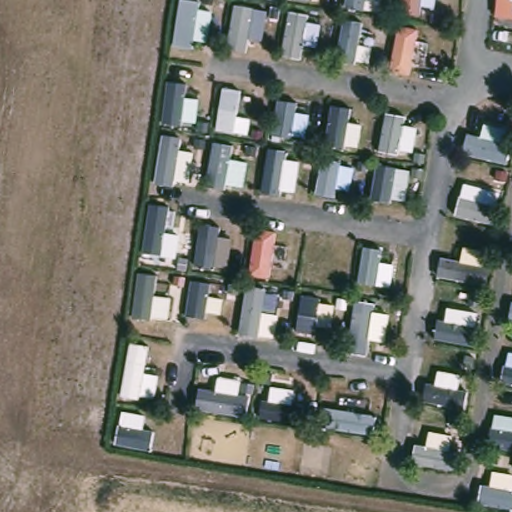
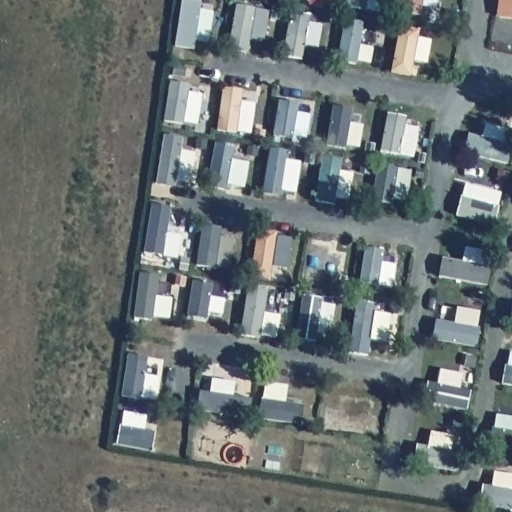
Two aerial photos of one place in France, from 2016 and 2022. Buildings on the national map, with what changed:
unchanged [(491,23),(494,0),(512,0),(512,25),(491,23)]

